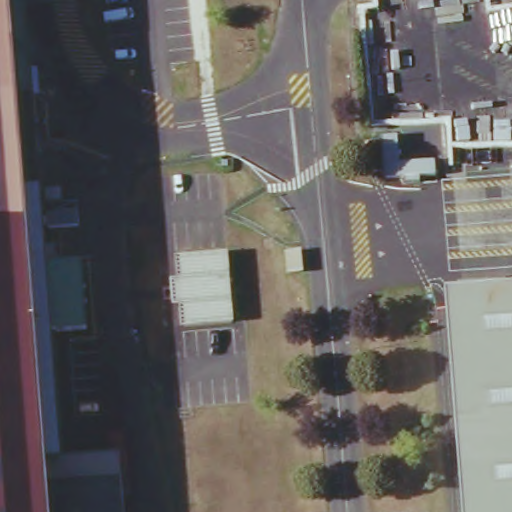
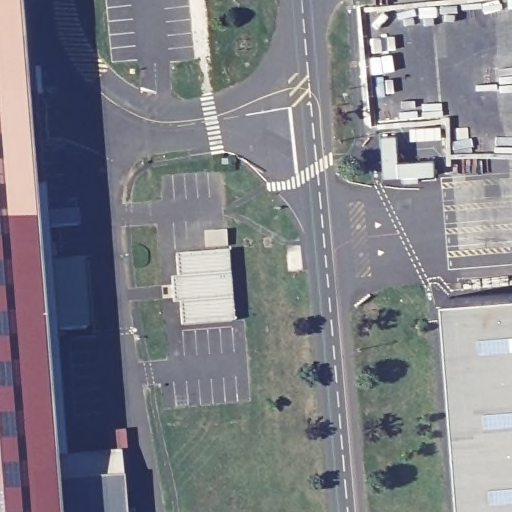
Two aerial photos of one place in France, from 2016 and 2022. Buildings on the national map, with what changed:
unchanged [(2,0),(9,95),(28,94),(30,134),(33,167),(39,246),(39,260),(40,266),(76,263),(80,327),(44,330),(53,415),(54,441),(56,457),(60,457),(73,456),(89,454),(113,453),(117,498),(118,512),(0,512),(0,0),(2,0)]
unchanged [(173,252),(224,249),(230,317),(179,322),(173,252)]
unchanged [(443,297),(512,291),(512,512),(459,512),(443,297)]

